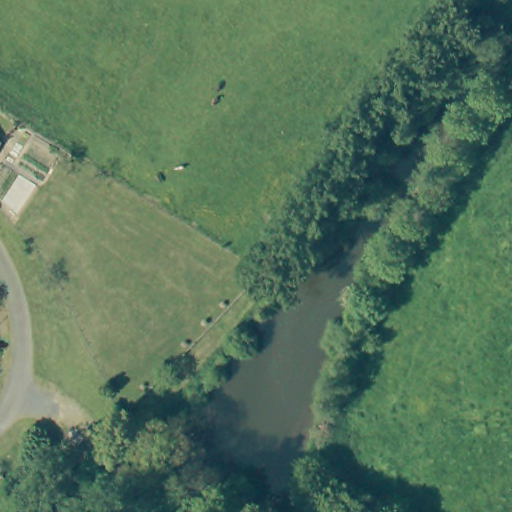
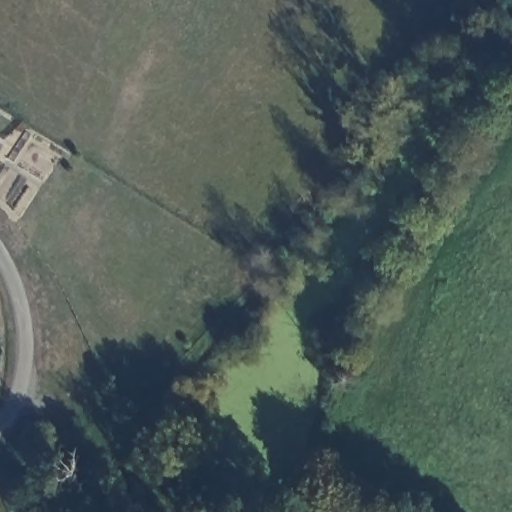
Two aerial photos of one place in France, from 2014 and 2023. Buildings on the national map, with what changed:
unchanged [(0,143),(0,138),(2,139),(0,143)]

